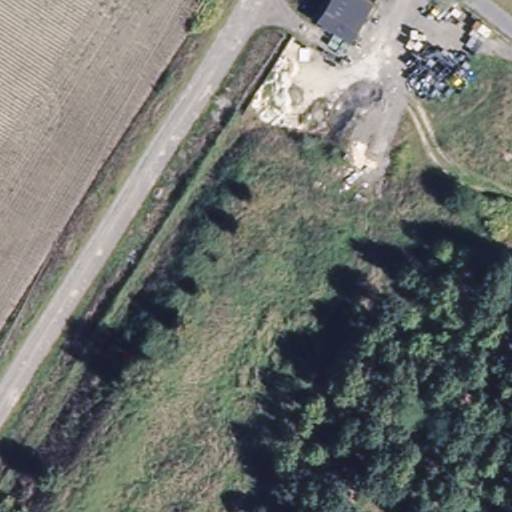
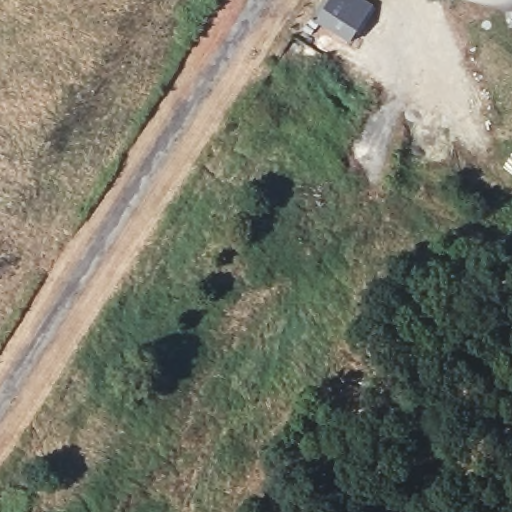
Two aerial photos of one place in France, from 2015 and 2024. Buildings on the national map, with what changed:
unchanged [(365,0),(375,6),(353,43),(320,23),(334,0),(365,0)]

